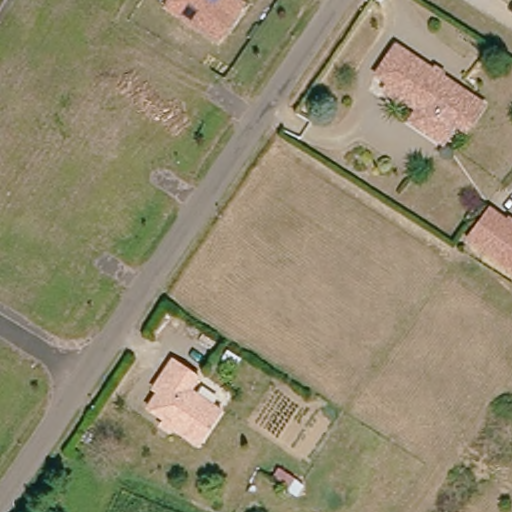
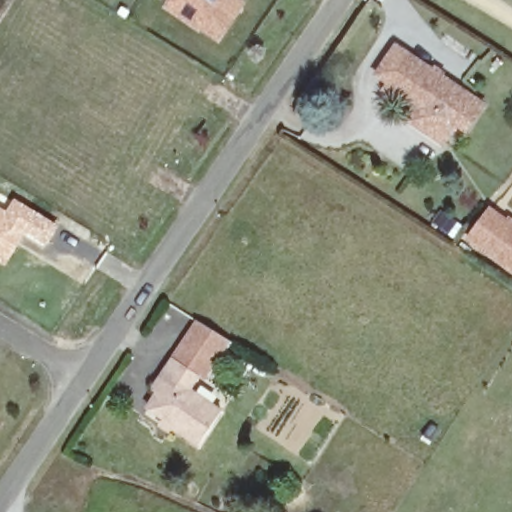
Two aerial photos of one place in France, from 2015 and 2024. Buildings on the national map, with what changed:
unchanged [(247,1),(222,36),(205,24),(207,21),(176,0),(244,0),(247,1)]
unchanged [(425,115),(379,82),(402,50),(478,103),(487,110),(472,135),(462,128),(448,148),(430,135),(417,127),(425,115)]
new [(6,210),(14,198),(60,225),(46,247),(25,234),(5,266),(0,263),(0,206),(6,210)]
unchanged [(512,228),(512,270),(476,243),(496,216),(512,228)]
new [(199,381),(174,365),(169,361),(197,320),(229,342),(199,381)]
unchanged [(162,428),(167,420),(153,410),(160,399),(154,393),(163,380),(174,365),(199,381),(191,392),(222,411),(200,448),(177,431),(174,436),(162,428)]

